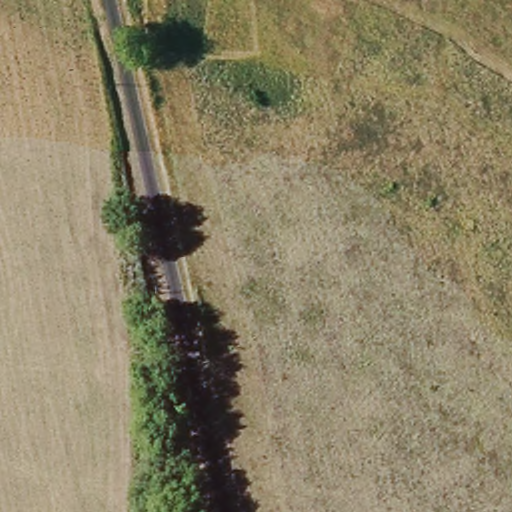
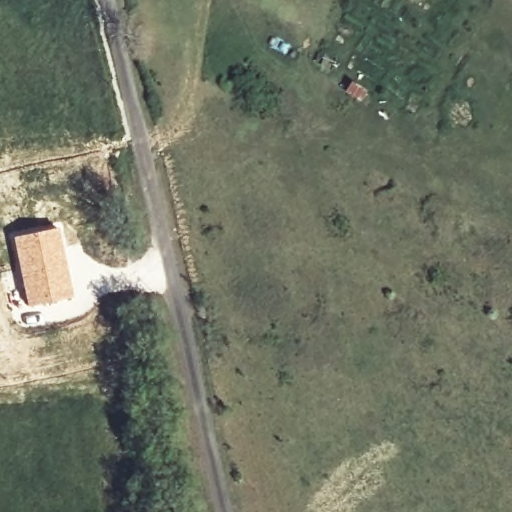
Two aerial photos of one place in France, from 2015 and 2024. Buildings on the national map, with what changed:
new [(58,226),(74,297),(27,306),(12,235),(58,226)]

